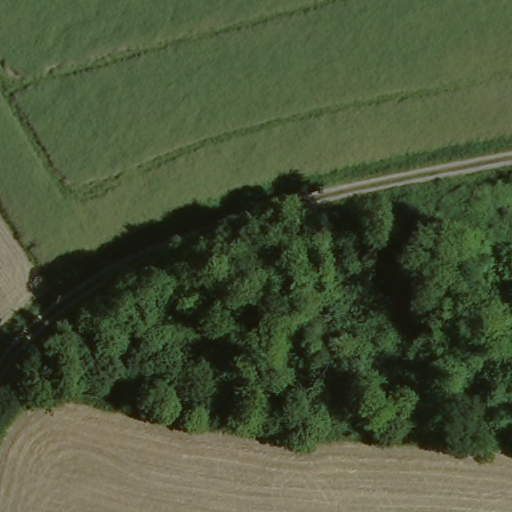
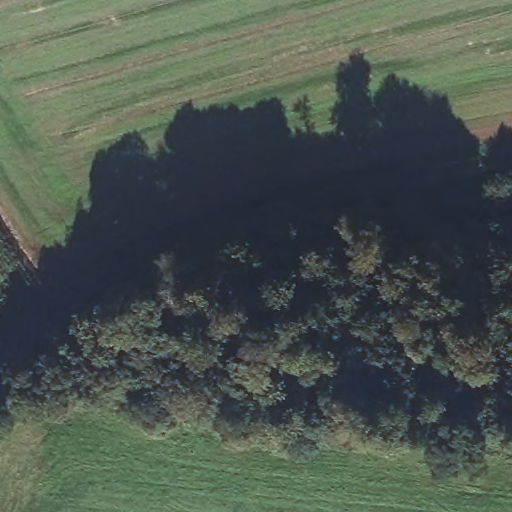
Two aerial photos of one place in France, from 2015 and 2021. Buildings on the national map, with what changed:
unchanged [(26,436),(14,425),(30,400),(40,407),(26,436)]

